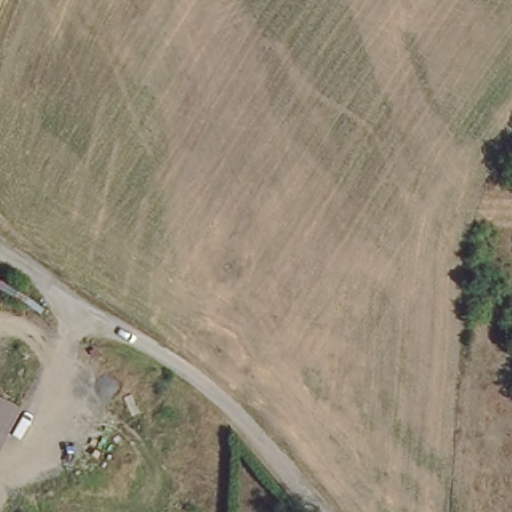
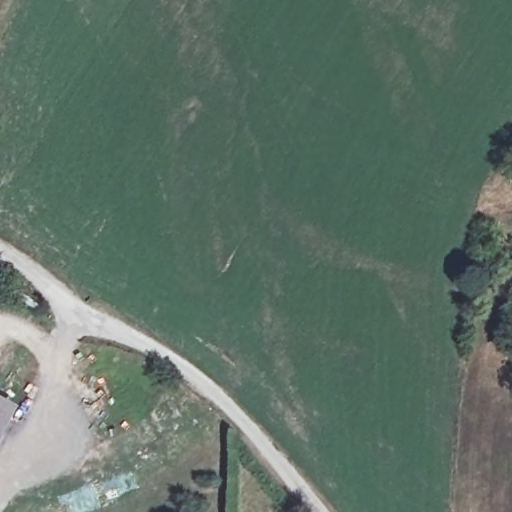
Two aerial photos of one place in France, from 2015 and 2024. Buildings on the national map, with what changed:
unchanged [(0,425),(0,405),(8,409),(0,425)]

